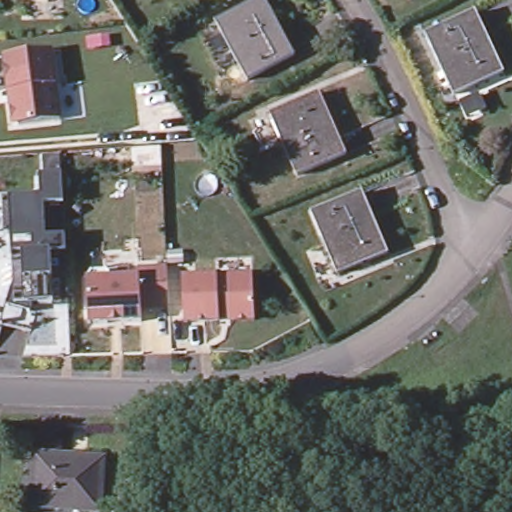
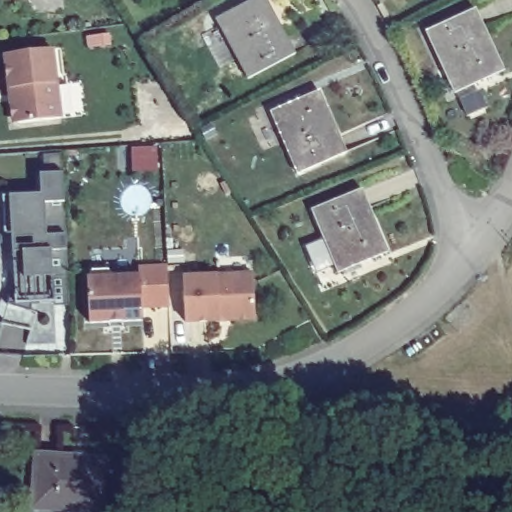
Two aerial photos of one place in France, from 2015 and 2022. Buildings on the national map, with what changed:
unchanged [(261,0),(293,60),(246,86),(213,26),(260,0),(261,0)]
unchanged [(478,12),(505,71),(453,94),(427,35),(478,12)]
unchanged [(83,117),(58,121),(16,126),(11,122),(9,109),(13,102),(12,91),(7,92),(2,57),(50,52),(54,86),(79,82),(83,117)]
unchanged [(277,115),(323,94),(348,152),(302,172),(277,115)]
unchanged [(67,212),(70,276),(55,277),(57,301),(35,302),(33,310),(10,303),(17,278),(15,250),(40,249),(39,230),(7,231),(7,221),(5,194),(43,192),(42,172),(65,171),(67,212)]
unchanged [(365,190),(392,252),(342,274),(315,212),(365,190)]
unchanged [(90,268),(105,267),(110,274),(137,273),(136,265),(165,263),(167,304),(139,306),(140,318),(121,318),(120,311),(105,312),(106,320),(87,321),(85,276),(90,268)]
unchanged [(255,277),(257,321),(233,322),(233,317),(222,318),(222,323),(187,325),(185,280),(255,277)]
unchanged [(39,456),(103,462),(98,512),(65,512),(33,508),(39,456)]

